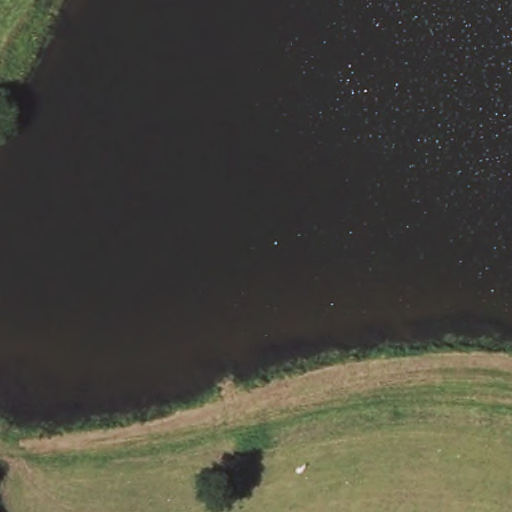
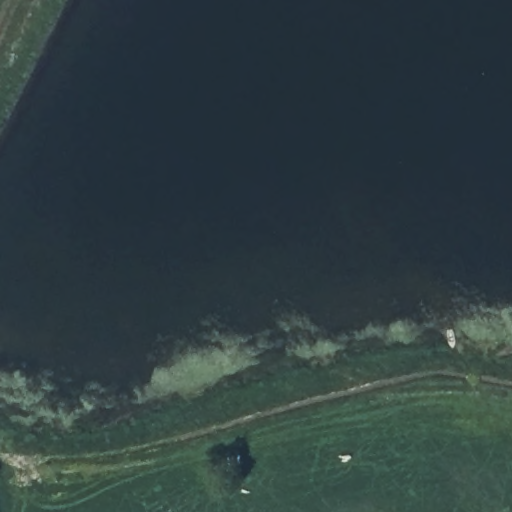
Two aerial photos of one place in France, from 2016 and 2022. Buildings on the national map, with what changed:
[]

